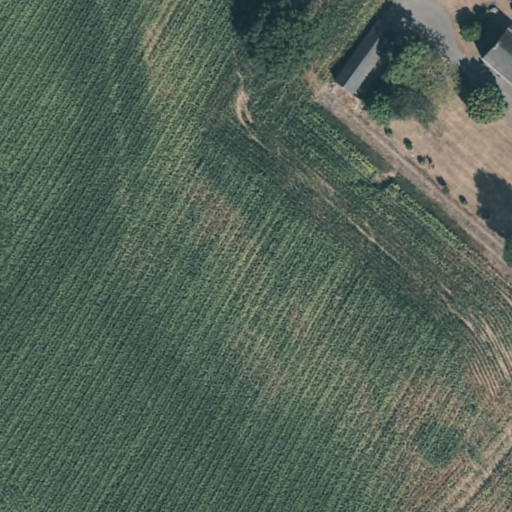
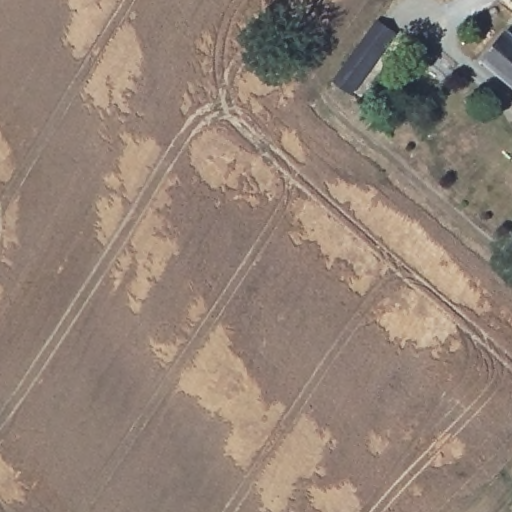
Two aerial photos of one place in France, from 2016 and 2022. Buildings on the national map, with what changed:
unchanged [(396,30),(354,90),(337,79),(379,18),(396,30)]
unchanged [(512,31),(512,80),(488,60),(512,31)]

